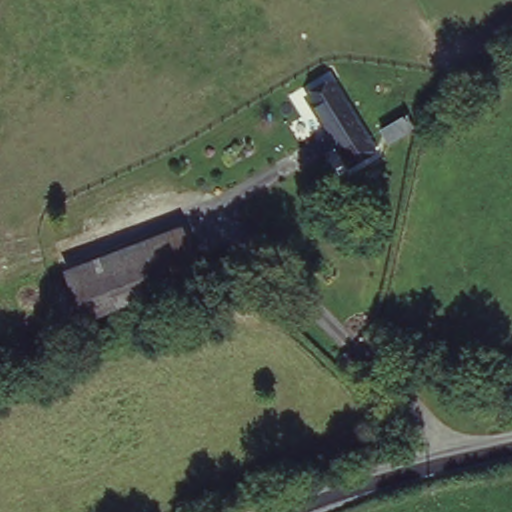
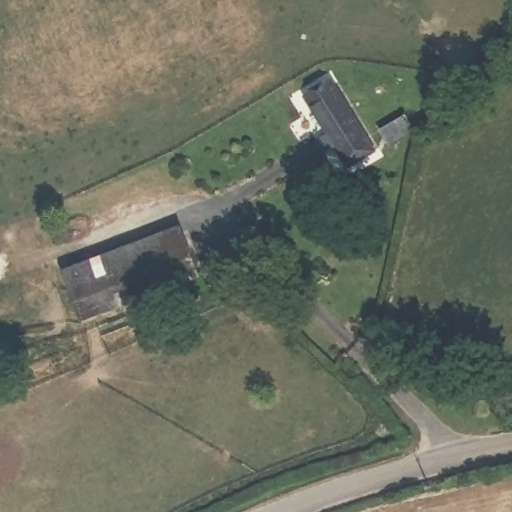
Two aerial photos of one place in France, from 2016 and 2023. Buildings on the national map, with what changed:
unchanged [(336,84),(354,162),(331,169),(311,91),(336,84)]
unchanged [(393,120),(396,135),(370,142),(366,127),(393,120)]
unchanged [(180,225),(203,274),(89,320),(63,269),(180,225)]

